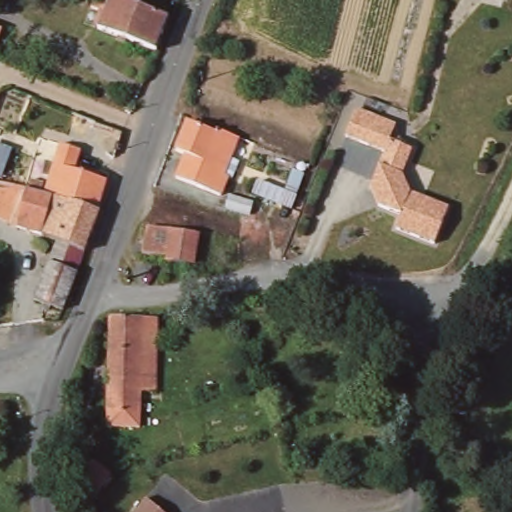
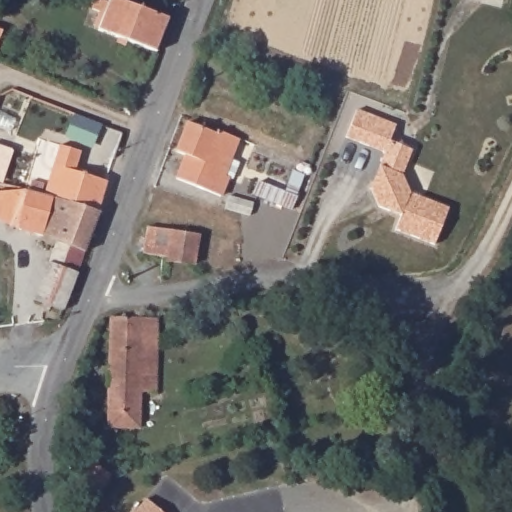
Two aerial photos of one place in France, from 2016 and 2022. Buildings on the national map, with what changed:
unchanged [(120,0),(169,18),(157,51),(101,30),(106,14),(94,9),(97,0),(120,0)]
unchanged [(434,247),(396,236),(399,220),(384,214),(372,196),(386,155),(347,142),(361,112),(399,125),(393,143),(414,149),(402,178),(410,196),(449,208),(434,247)]
unchanged [(183,122),(210,134),(212,130),(236,139),(220,176),(224,177),(215,196),(171,179),(179,155),(171,151),(183,122)]
unchanged [(0,172),(0,147),(8,151),(0,172)]
unchanged [(54,164),(107,181),(99,212),(54,198),(51,197),(46,195),(54,164)]
unchanged [(247,194),(254,180),(278,191),(289,170),(300,176),(291,196),(285,209),(247,194)]
unchanged [(46,195),(51,197),(54,198),(43,235),(17,229),(0,221),(0,193),(27,191),(46,195)]
unchanged [(223,195),(248,202),(246,209),(245,215),(237,213),(220,208),(223,195)]
unchanged [(43,235),(54,198),(99,212),(84,252),(55,239),(43,235)]
unchanged [(199,229),(194,259),(166,256),(166,253),(142,249),(148,221),(174,225),(199,229)]
unchanged [(55,239),(84,252),(63,310),(34,299),(55,239)]
unchanged [(332,312),(347,315),(346,326),(330,325),(332,312)]
unchanged [(122,315),(155,316),(154,350),(165,350),(165,387),(152,389),(151,410),(144,410),(119,410),(122,315)]
unchanged [(88,396),(102,398),(100,411),(89,413),(83,402),(88,396)]
unchanged [(64,483),(80,460),(104,480),(86,500),(64,483)]
unchanged [(145,495),(165,512),(131,512),(145,495)]
unchanged [(103,511),(104,512),(102,512),(103,511)]

